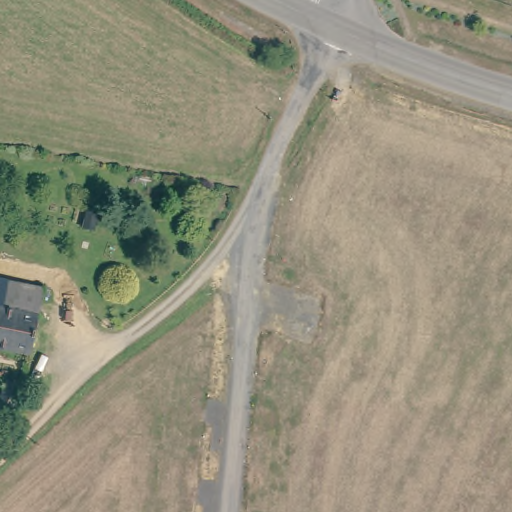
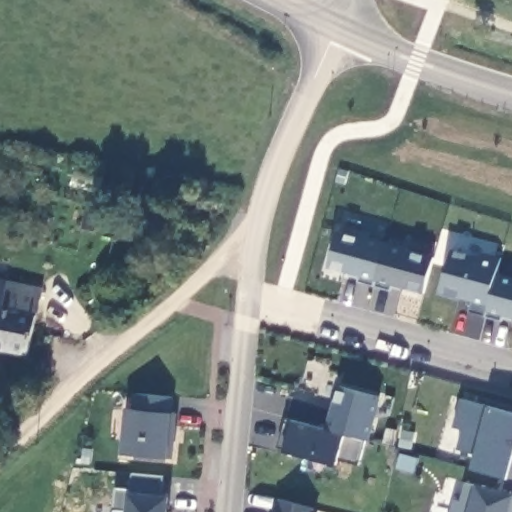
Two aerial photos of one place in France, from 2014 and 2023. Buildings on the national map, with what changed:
new [(375,281),(373,286),(359,282),(362,276),(329,267),(337,231),(362,239),(365,236),(385,242),(375,281)]
new [(424,295),(392,285),(391,291),(377,287),(379,282),(375,281),(385,242),(408,249),(408,252),(434,258),(424,295)]
new [(486,317),(470,313),(474,302),(440,292),(451,249),(481,257),(483,254),(502,259),(497,272),(486,317)]
unchanged [(30,308),(0,301),(0,271),(38,280),(30,308)]
new [(503,313),(501,322),(486,317),(497,272),(512,277),(512,316),(503,313)]
unchanged [(18,355),(0,350),(0,301),(30,308),(18,355)]
demolished [(0,406),(0,379),(9,381),(0,406)]
new [(329,430),(339,387),(382,397),(370,441),(367,440),(329,430)]
new [(126,408),(135,410),(136,395),(175,397),(174,413),(179,413),(174,458),(169,457),(123,455),(126,408)]
new [(509,477),(473,468),(477,453),(457,447),(462,428),(454,427),(461,400),(489,407),(512,413),(512,479),(509,477)]
new [(359,466),(338,458),(337,463),(284,450),(292,420),(329,430),(367,440),(359,466)]
new [(164,497),(170,497),(168,512),(126,512),(113,510),(116,488),(131,489),(132,476),(164,479),(164,497)]
new [(510,510),(509,512),(452,512),(455,500),(462,502),(465,483),(480,487),(512,496),(512,511),(510,510)]
new [(314,508),(313,512),(276,512),(279,499),(314,508)]

